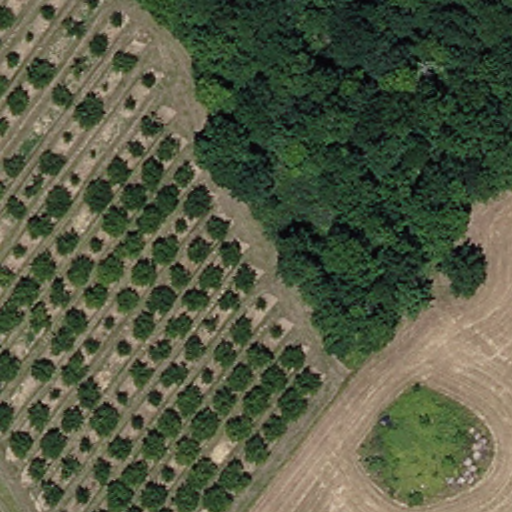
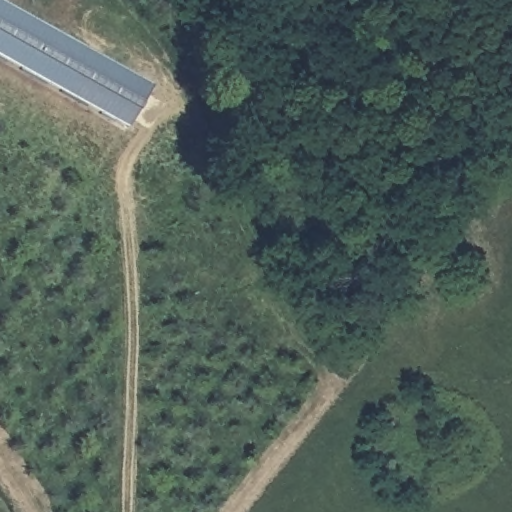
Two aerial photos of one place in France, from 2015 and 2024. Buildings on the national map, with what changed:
new [(0,56),(0,0),(2,0),(150,86),(126,129),(0,56)]

